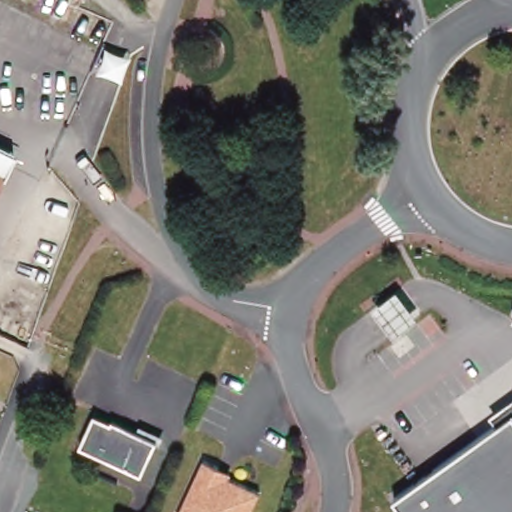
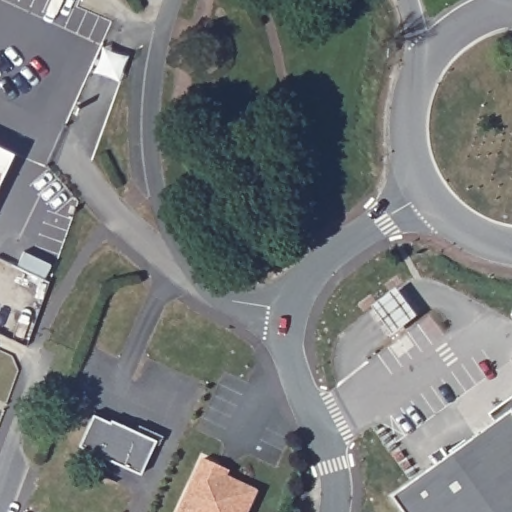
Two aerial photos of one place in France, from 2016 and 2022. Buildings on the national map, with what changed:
unchanged [(120,55),(111,81),(84,72),(94,45),(120,55)]
unchanged [(0,169),(0,145),(9,149),(0,169)]
unchanged [(398,290),(419,317),(394,335),(374,307),(398,290)]
unchanged [(497,423),(490,415),(512,398),(512,512),(404,512),(395,500),(497,423)]
unchanged [(83,445),(95,415),(112,421),(114,418),(159,436),(144,470),(83,445)]
unchanged [(180,512),(201,458),(217,465),(229,470),(226,475),(259,488),(249,512),(180,512)]

